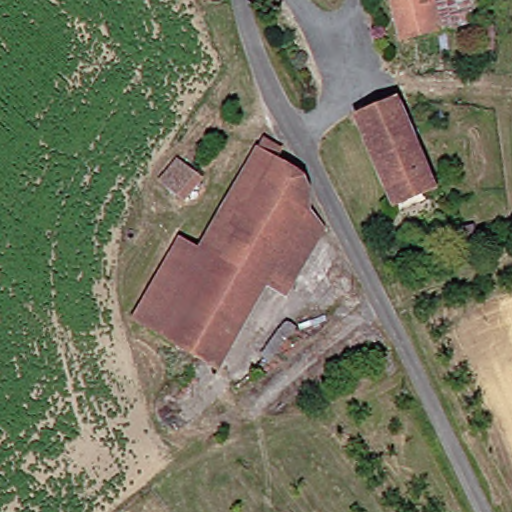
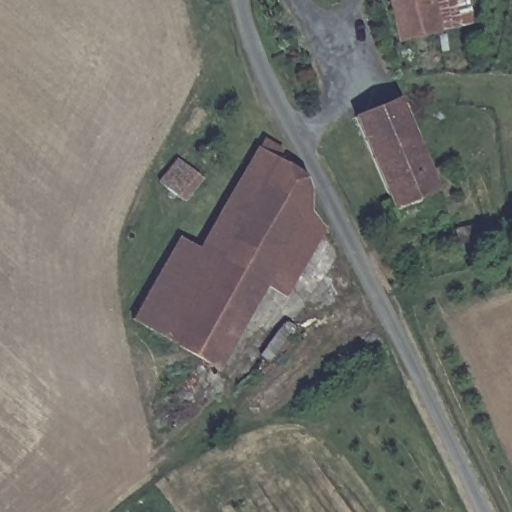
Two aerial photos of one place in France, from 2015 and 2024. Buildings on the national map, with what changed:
unchanged [(395,0),(477,0),(482,18),(470,22),(405,39),(395,0)]
unchanged [(404,100),(445,187),(400,210),(363,130),(358,120),(372,114),(404,100)]
unchanged [(269,155),(300,171),(313,211),(256,180),(269,155)]
unchanged [(209,262),(256,180),(313,211),(284,268),(266,262),(244,300),(190,267),(197,256),(209,262)]
unchanged [(306,281),(284,268),(313,211),(332,221),(306,281)]
unchanged [(190,267),(244,300),(209,362),(138,323),(181,247),(197,256),(190,267)]

